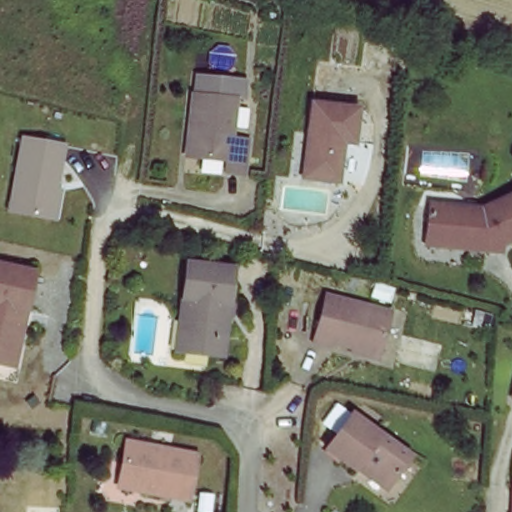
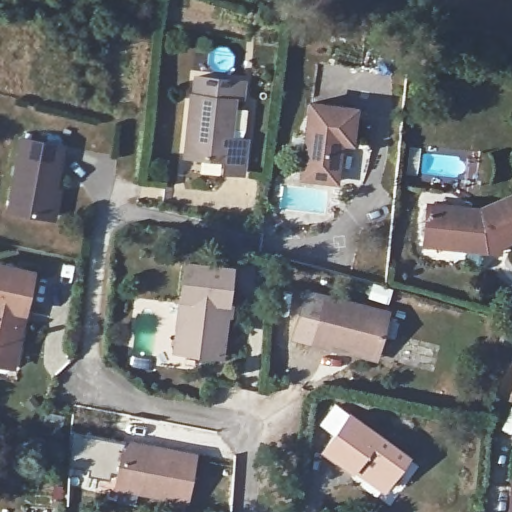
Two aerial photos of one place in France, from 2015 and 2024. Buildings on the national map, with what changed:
unchanged [(253,142),(251,174),(234,173),(235,161),(193,158),(198,98),(201,98),(202,78),(238,81),(250,81),(249,101),(240,100),(237,141),(253,142)]
unchanged [(341,139),(338,178),(305,175),(313,101),(355,106),(352,139),(341,139)]
unchanged [(63,146),(50,217),(9,208),(22,138),(63,146)]
unchanged [(447,256),(423,253),(425,247),(429,212),(444,215),(477,221),(480,221),(512,208),(512,252),(498,258),(497,264),(490,263),(447,256)]
unchanged [(0,363),(0,343),(0,265),(33,273),(24,311),(22,321),(16,347),(12,366),(0,363)]
unchanged [(180,320),(190,265),(235,272),(221,358),(183,352),(175,350),(180,320)]
unchanged [(352,353),(353,348),(330,342),(328,347),(313,343),(327,295),(390,312),(379,355),(377,360),(352,353)]
unchanged [(357,463),(352,469),(323,449),(349,414),(407,456),(385,484),(357,463)]
unchanged [(117,480),(125,442),(195,456),(186,501),(142,493),(116,488),(117,480)]

